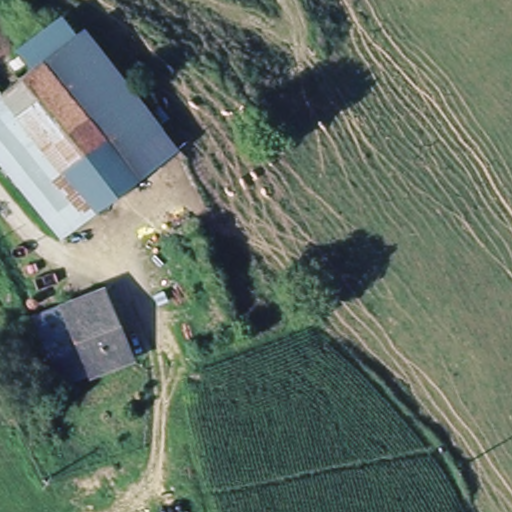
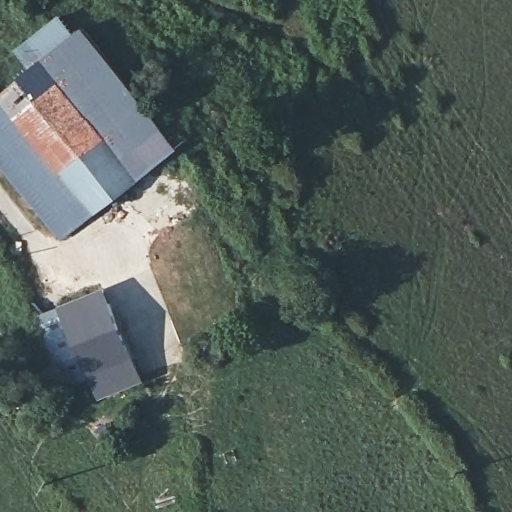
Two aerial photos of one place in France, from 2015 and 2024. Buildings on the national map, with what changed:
unchanged [(94,217),(57,245),(0,172),(0,95),(83,31),(164,131),(114,169),(78,196),(94,217)]
unchanged [(101,289),(132,360),(118,365),(90,378),(62,307),(97,291),(101,289)]
unchanged [(58,391),(29,318),(61,307),(89,379),(58,391)]

